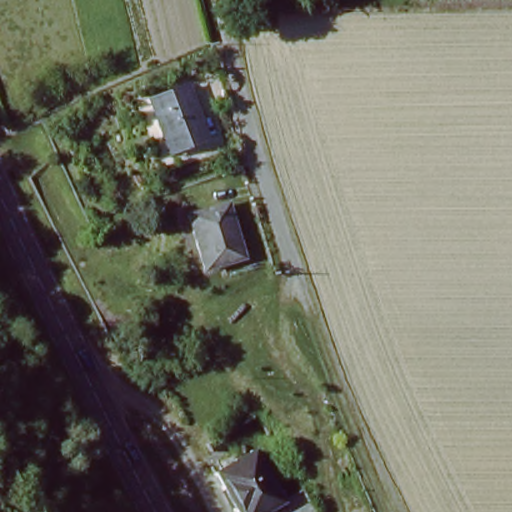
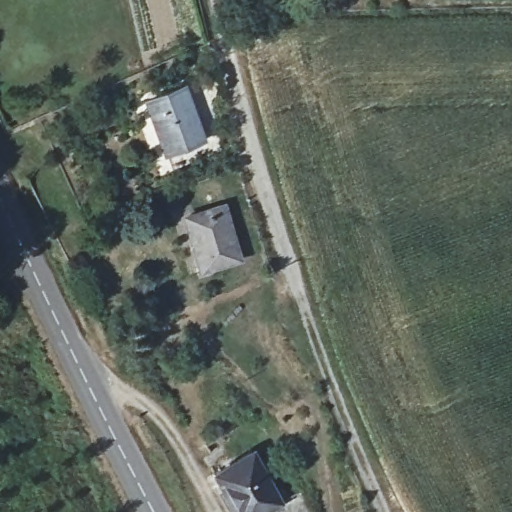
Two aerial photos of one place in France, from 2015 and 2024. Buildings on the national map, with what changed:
unchanged [(162,152),(152,95),(192,89),(201,144),(162,152)]
unchanged [(222,204),(243,256),(205,272),(183,220),(222,204)]
unchanged [(228,512),(210,479),(250,458),(277,506),(302,493),(313,512),(228,512)]

